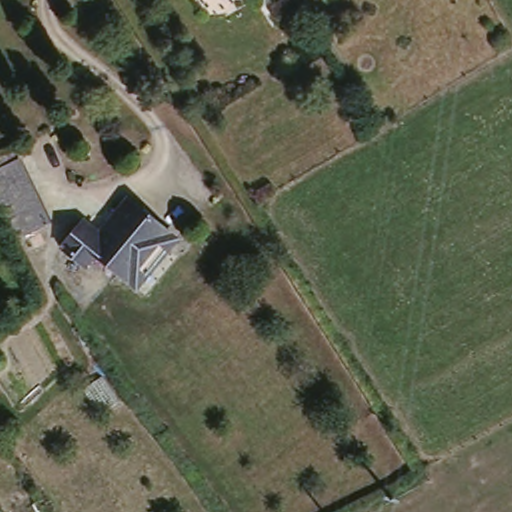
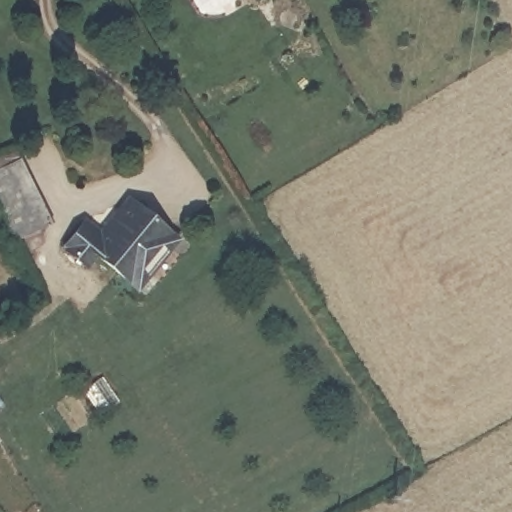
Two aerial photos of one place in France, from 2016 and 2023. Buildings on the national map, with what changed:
unchanged [(51,221),(14,241),(13,237),(0,209),(0,169),(18,159),(51,221)]
unchanged [(184,232),(133,298),(59,245),(77,216),(96,230),(123,195),(184,232)]

